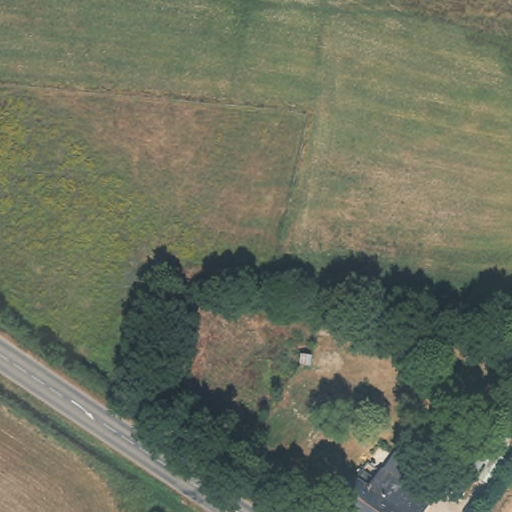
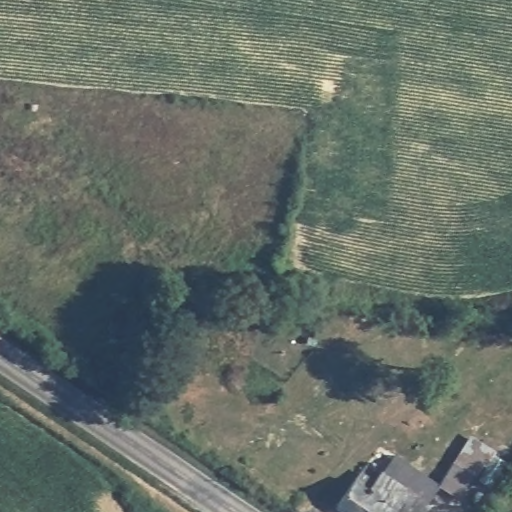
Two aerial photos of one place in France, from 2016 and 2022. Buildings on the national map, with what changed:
unchanged [(477,483),(462,505),(439,489),(455,467),(477,483)]
unchanged [(430,512),(336,512),(363,477),(374,485),(381,475),(432,510),(430,512)]

